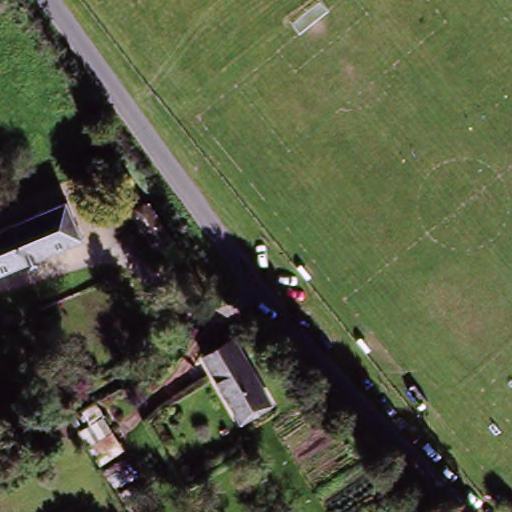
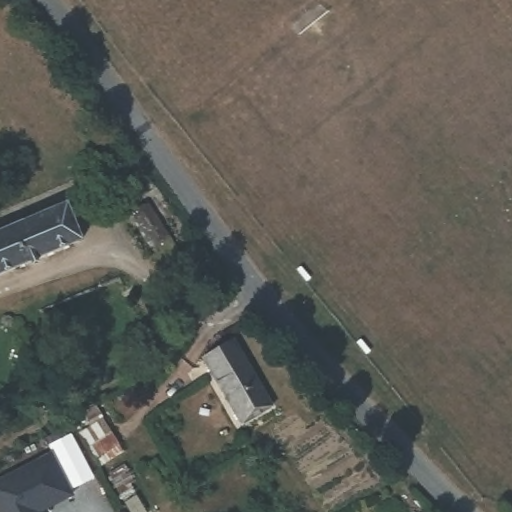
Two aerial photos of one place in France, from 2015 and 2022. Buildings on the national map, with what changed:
unchanged [(178,244),(163,253),(140,221),(147,216),(143,210),(151,204),(178,244)]
unchanged [(86,241),(0,275),(0,234),(70,206),(86,241)]
unchanged [(234,348),(269,411),(240,426),(205,362),(234,348)]
unchanged [(106,423),(122,451),(100,463),(83,436),(106,423)]
new [(74,495),(41,512),(0,512),(0,479),(50,452),(74,495)]

